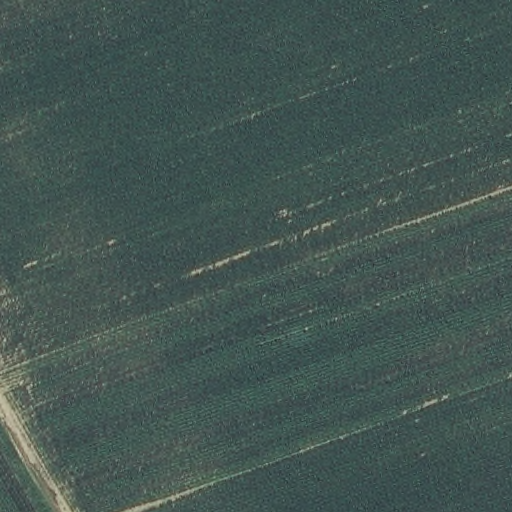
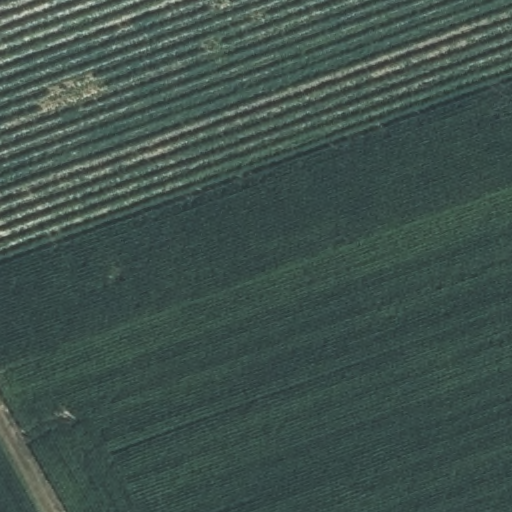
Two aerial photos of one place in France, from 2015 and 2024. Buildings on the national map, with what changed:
[]

